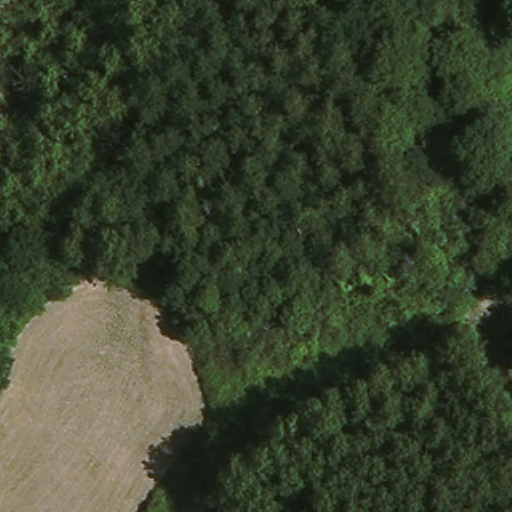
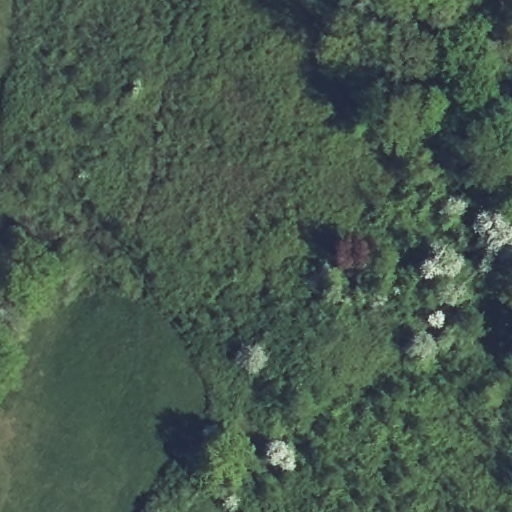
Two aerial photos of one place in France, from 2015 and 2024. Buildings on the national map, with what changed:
[]

